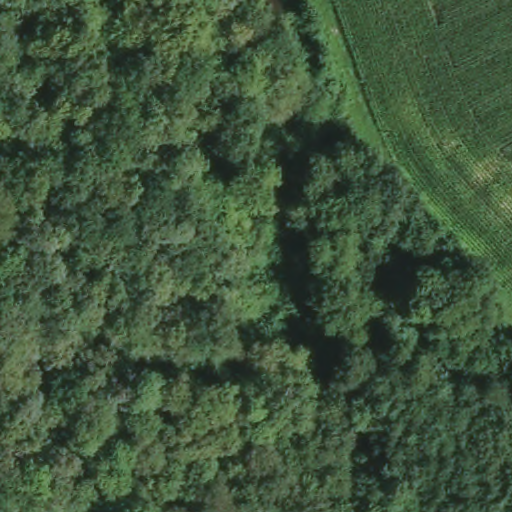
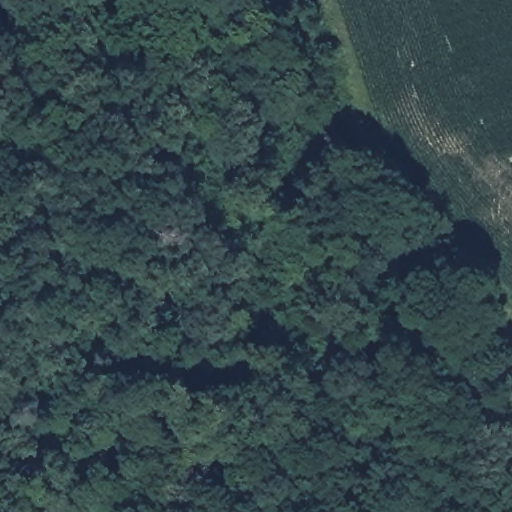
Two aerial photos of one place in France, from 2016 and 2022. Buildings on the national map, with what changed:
[]

